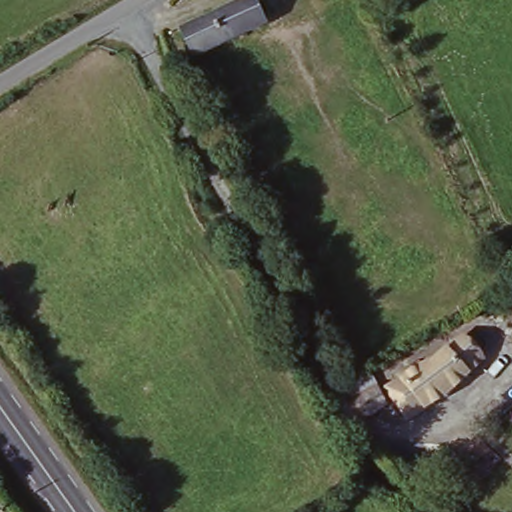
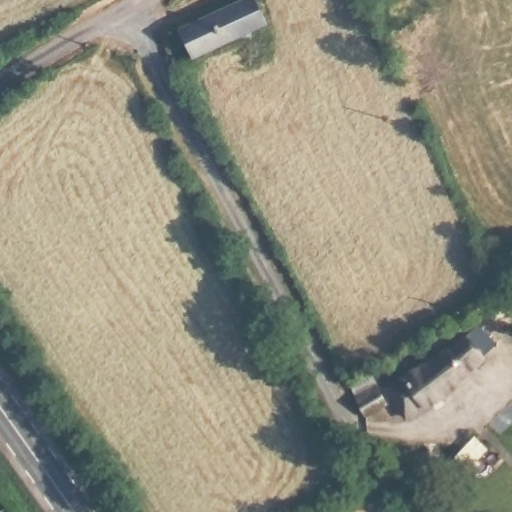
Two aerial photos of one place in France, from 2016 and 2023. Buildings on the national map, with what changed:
unchanged [(235,0),(257,0),(266,18),(193,52),(182,24),(235,0)]
unchanged [(430,356),(436,356),(442,342),(461,328),(481,349),(464,362),(445,389),(405,407),(391,374),(430,356)]
unchanged [(377,377),(385,394),(365,406),(355,387),(377,377)]

